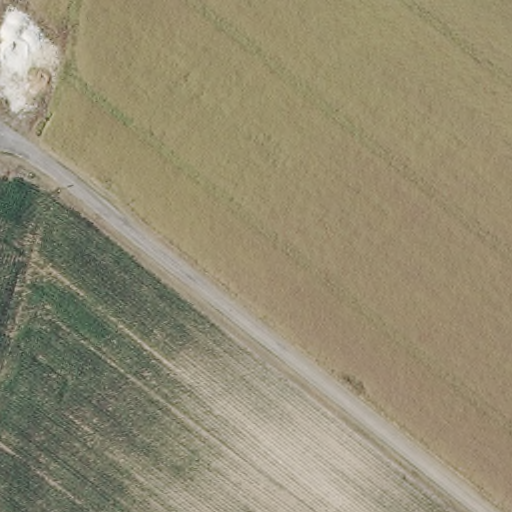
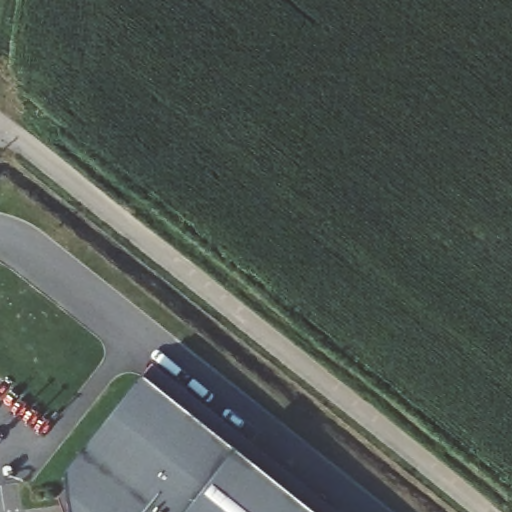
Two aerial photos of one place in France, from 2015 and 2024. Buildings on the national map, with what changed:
new [(326,512),(59,512),(50,471),(150,380),(326,512)]

